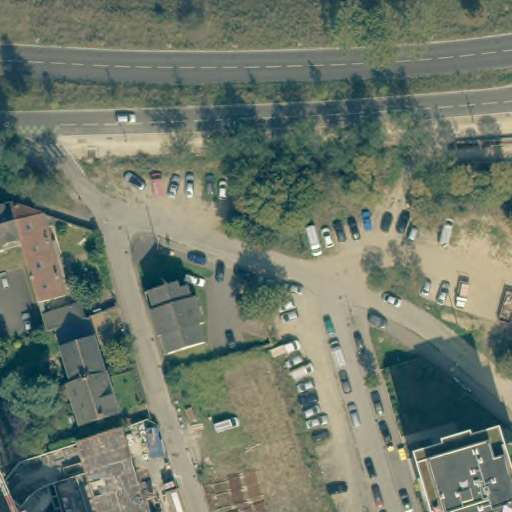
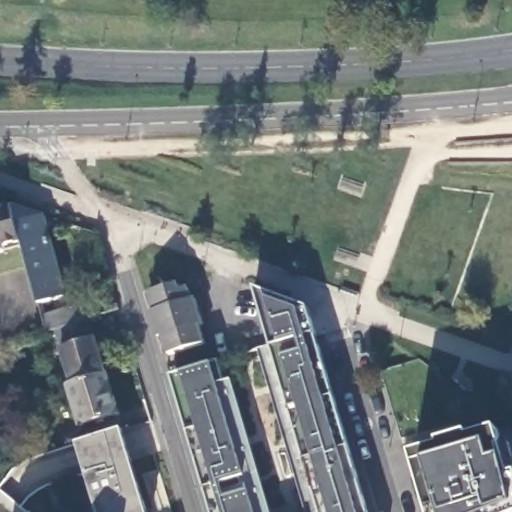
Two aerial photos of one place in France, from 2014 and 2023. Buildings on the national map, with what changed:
unchanged [(16,208),(14,209),(22,237),(2,243),(3,246),(0,247),(0,202),(13,200),(16,208)]
unchanged [(41,210),(65,290),(47,295),(48,301),(40,302),(22,237),(14,209),(16,208),(13,200),(41,210)]
unchanged [(149,306),(144,288),(149,287),(178,278),(180,284),(188,282),(191,293),(194,292),(202,319),(199,320),(205,337),(168,348),(162,350),(157,333),(149,306)]
new [(272,348),(255,289),(308,308),(368,512),(308,512),(260,352),(272,348)]
unchanged [(72,380),(54,325),(46,327),(42,310),(79,298),(85,314),(87,313),(105,368),(82,376),(72,380)]
new [(225,383),(232,381),(272,512),(212,512),(171,377),(219,362),(225,383)]
unchanged [(72,380),(82,376),(105,368),(118,408),(81,421),(77,409),(68,381),(72,380)]
unchanged [(97,512),(77,444),(122,430),(147,512),(97,512)]
unchanged [(470,442),(497,433),(503,452),(512,449),(512,512),(429,512),(412,460),(441,451),(470,442)]
unchanged [(20,446),(24,460),(0,467),(0,452),(20,446)]
demolished [(273,463),(250,471),(251,475),(248,487),(240,490),(243,500),(235,502),(236,507),(229,509),(228,505),(219,507),(206,465),(248,452),(268,446),(273,463)]
demolished [(286,497),(314,488),(318,503),(321,512),(290,512),(291,512),(286,497)]
unchanged [(4,500),(0,507),(0,497),(4,500)]

